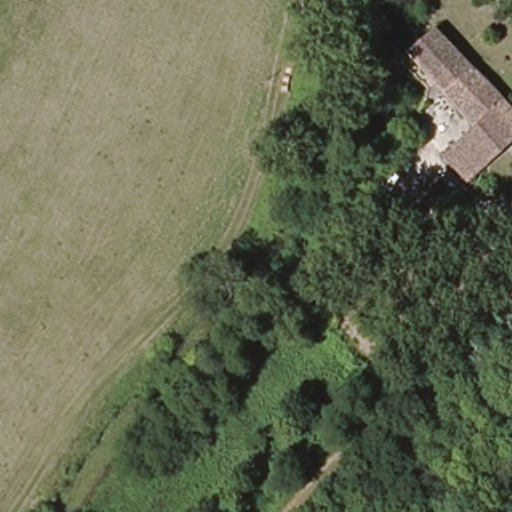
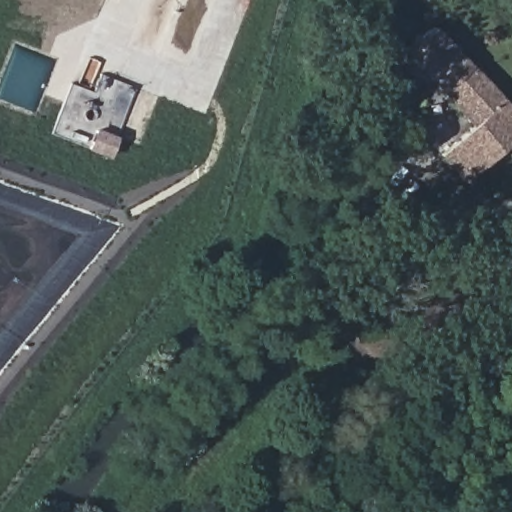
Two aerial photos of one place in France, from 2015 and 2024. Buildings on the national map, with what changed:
unchanged [(512,102),(512,148),(476,180),(450,151),(483,122),(417,50),(445,25),(512,102)]

